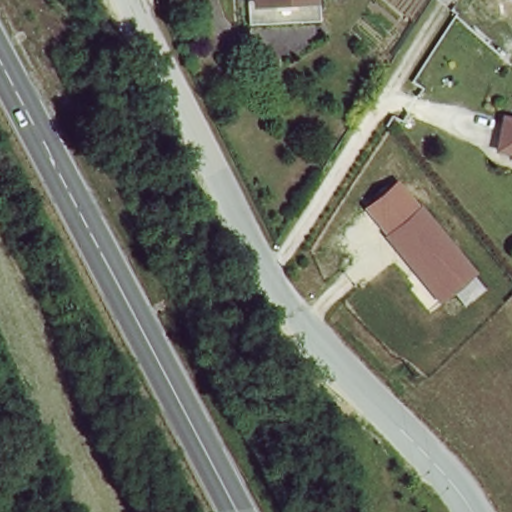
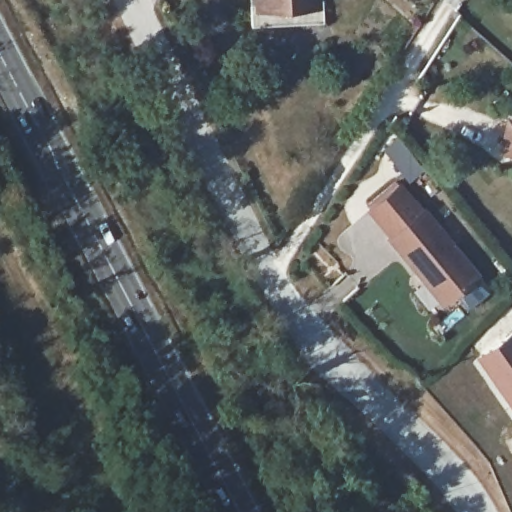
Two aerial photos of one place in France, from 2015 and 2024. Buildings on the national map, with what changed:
unchanged [(249,14),(248,0),(320,0),(321,9),(249,14)]
unchanged [(502,148),(509,117),(512,118),(512,151),(502,148)]
unchanged [(366,209),(400,181),(423,208),(388,233),(366,209)]
unchanged [(479,275),(442,304),(388,233),(425,206),(479,275)]
new [(512,331),(512,409),(475,356),(512,331)]

